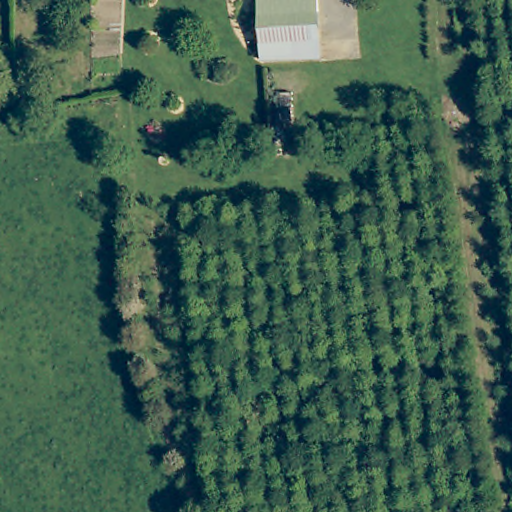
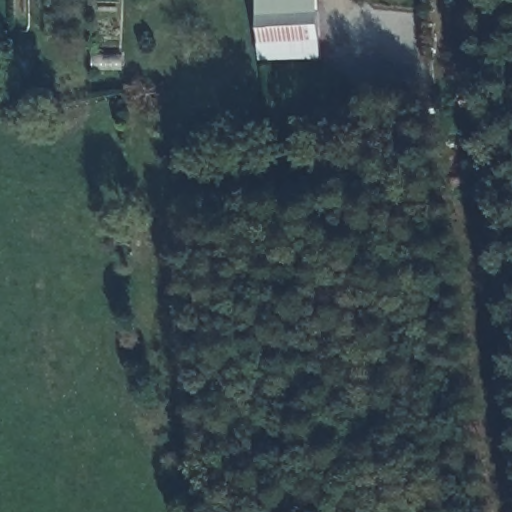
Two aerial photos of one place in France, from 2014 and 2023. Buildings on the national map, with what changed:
unchanged [(259,1),(263,0),(316,0),(318,17),(262,27),(259,1)]
unchanged [(266,56),(264,45),(262,27),(318,17),(323,46),(266,56)]
unchanged [(0,55),(1,99),(0,99),(0,55)]

